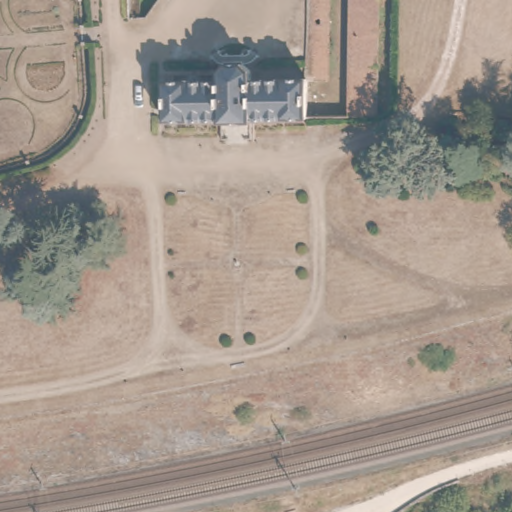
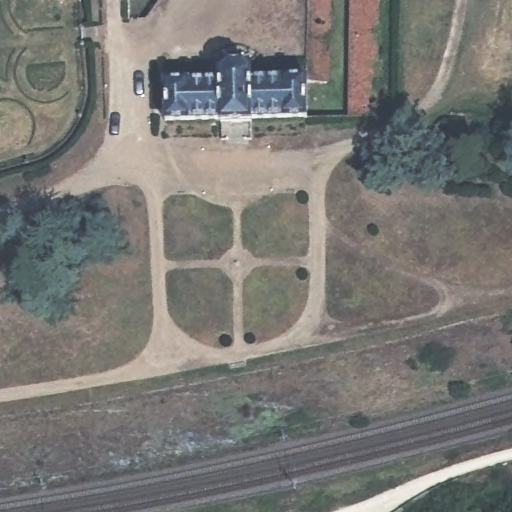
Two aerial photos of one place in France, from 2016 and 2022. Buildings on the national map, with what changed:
unchanged [(88,26),(68,0),(89,0),(88,26)]
unchanged [(314,83),(292,83),(294,0),(316,0),(314,83)]
unchanged [(375,121),(347,121),(349,0),(377,0),(375,121)]
unchanged [(206,83),(206,69),(241,69),(241,83),(292,83),(292,120),(241,120),(241,136),(210,136),(210,120),(152,120),(152,83),(206,83)]

